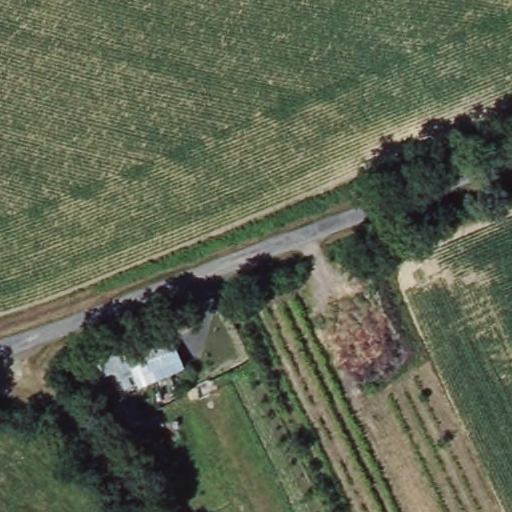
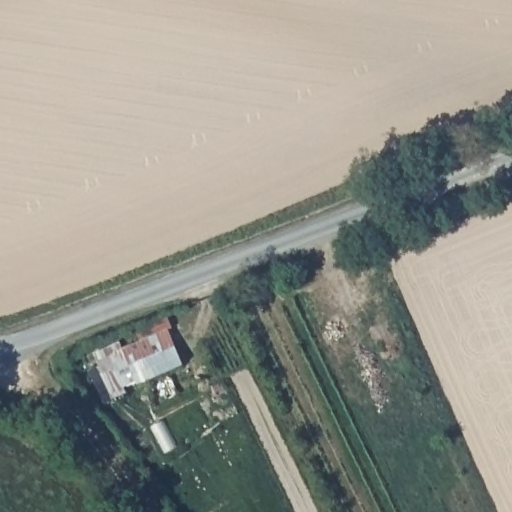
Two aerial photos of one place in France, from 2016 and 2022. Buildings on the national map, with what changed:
unchanged [(123,391),(108,354),(168,328),(185,364),(123,391)]

